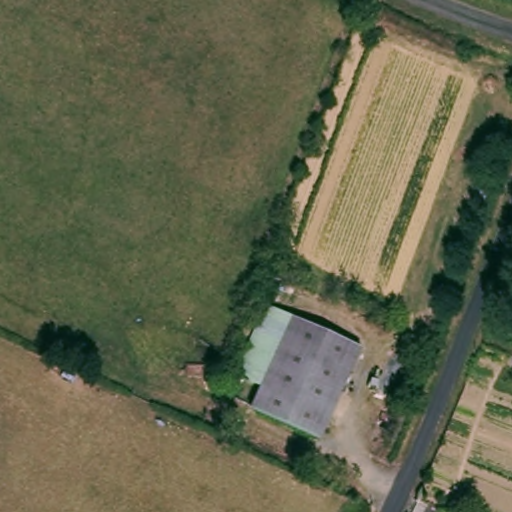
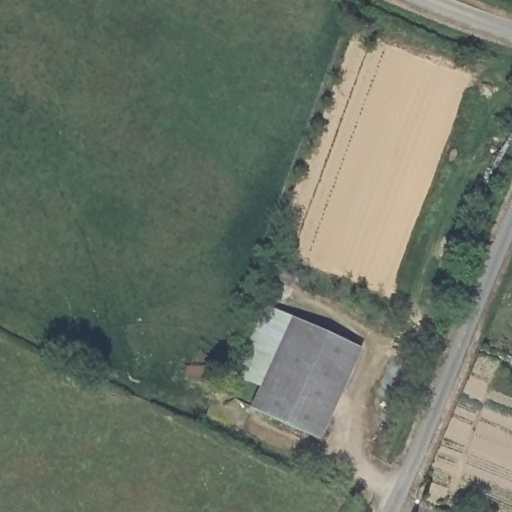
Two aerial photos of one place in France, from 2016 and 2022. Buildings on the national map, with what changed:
unchanged [(360,345),(316,435),(252,404),(295,314),(360,345)]

